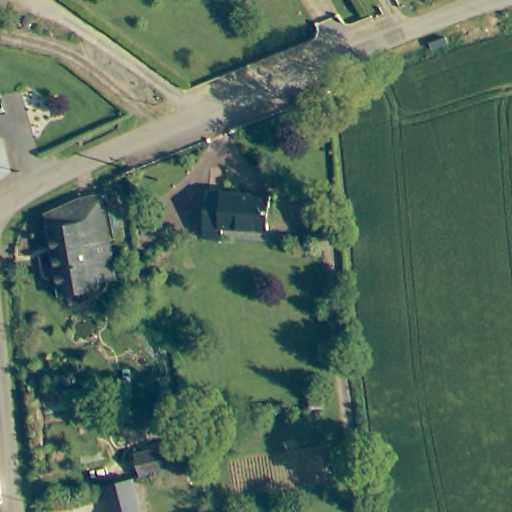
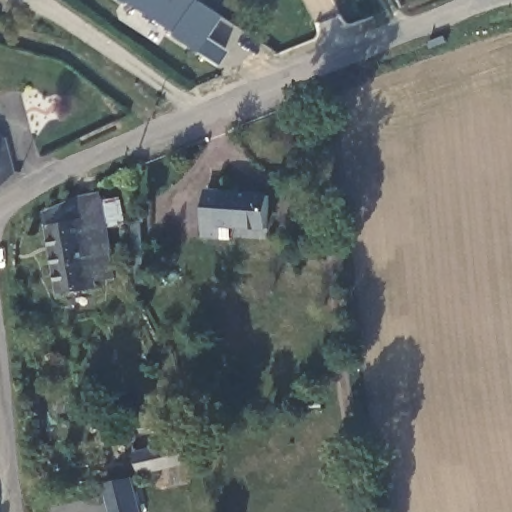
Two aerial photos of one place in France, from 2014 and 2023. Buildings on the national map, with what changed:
new [(110,0),(122,0),(119,5),(110,0)]
new [(224,51),(214,67),(165,36),(170,28),(125,0),(190,0),(214,15),(201,37),(224,51)]
unchanged [(0,137),(0,127),(6,131),(0,137)]
unchanged [(10,133),(18,163),(0,179),(0,137),(6,131),(10,133)]
unchanged [(210,186),(274,190),(272,224),(225,223),(224,235),(207,233),(210,186)]
unchanged [(99,285),(100,296),(63,301),(48,217),(82,200),(84,206),(103,202),(114,259),(110,259),(115,282),(99,285)]
unchanged [(191,443),(196,464),(164,471),(137,478),(133,457),(191,443)]
unchanged [(104,485),(135,478),(143,512),(110,512),(104,485)]

